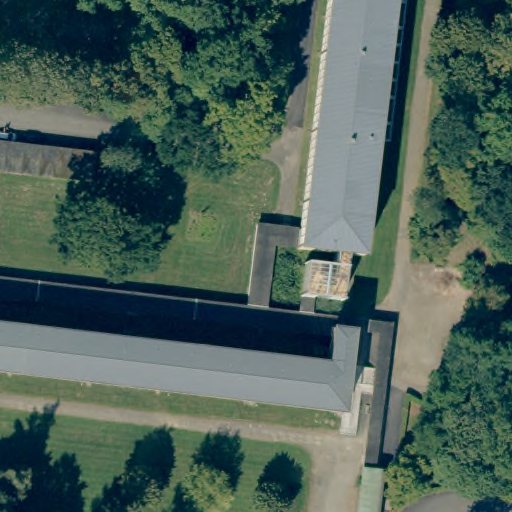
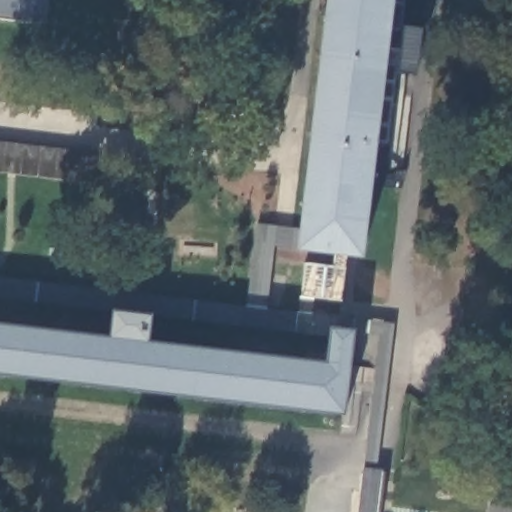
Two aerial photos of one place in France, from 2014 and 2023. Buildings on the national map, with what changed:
new [(0,19),(0,0),(49,0),(46,25),(0,19)]
unchanged [(258,223),(300,228),(328,0),(403,0),(385,141),(375,140),(360,256),(346,254),(341,301),(313,297),(311,312),(353,317),(352,331),(347,367),(346,377),(342,412),(0,372),(0,326),(326,364),(330,336),(0,297),(0,277),(248,305),(258,223)]
unchanged [(91,182),(0,172),(0,141),(95,152),(91,182)]
unchanged [(377,372),(381,335),(352,331),(353,317),(395,321),(379,471),(385,472),(380,512),(360,512),(377,372)]

